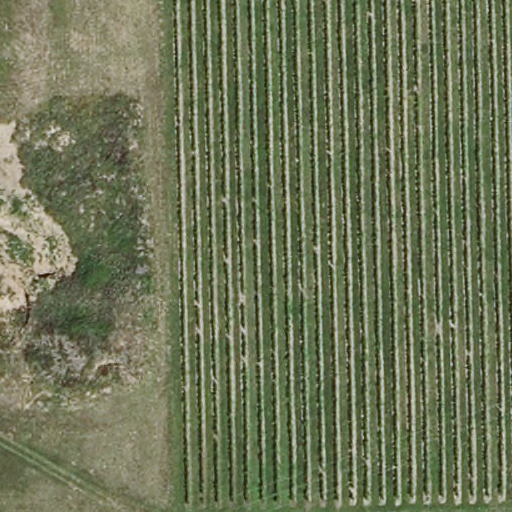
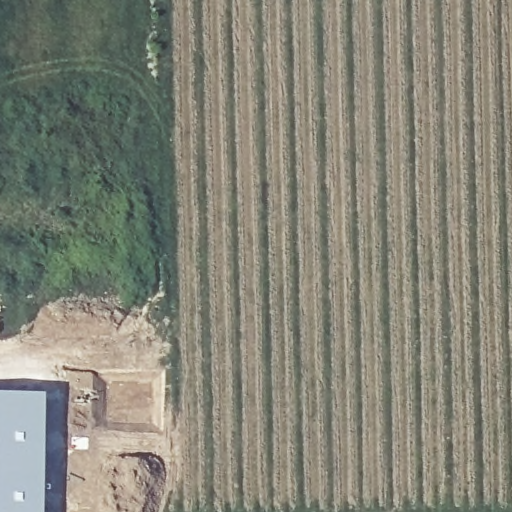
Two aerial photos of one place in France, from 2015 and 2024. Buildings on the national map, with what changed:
new [(44,392),(42,512),(0,512),(0,392),(44,392)]

